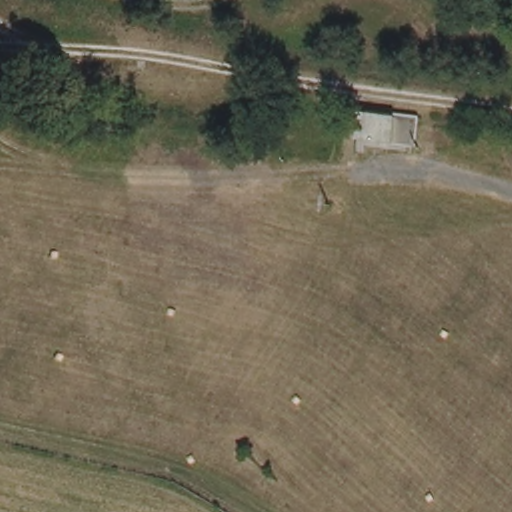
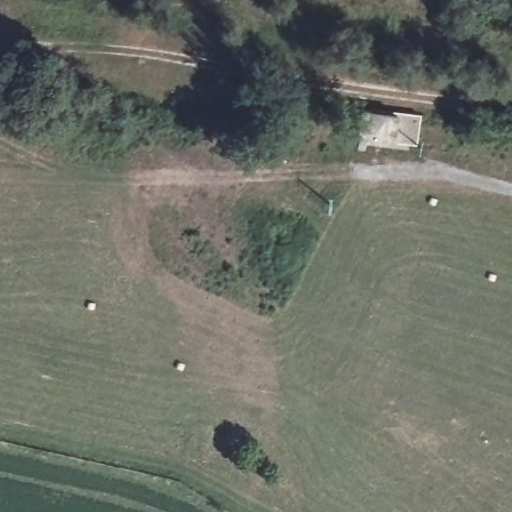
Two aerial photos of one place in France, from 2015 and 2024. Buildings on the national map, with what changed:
unchanged [(420,146),(360,141),(365,109),(424,116),(420,146)]

